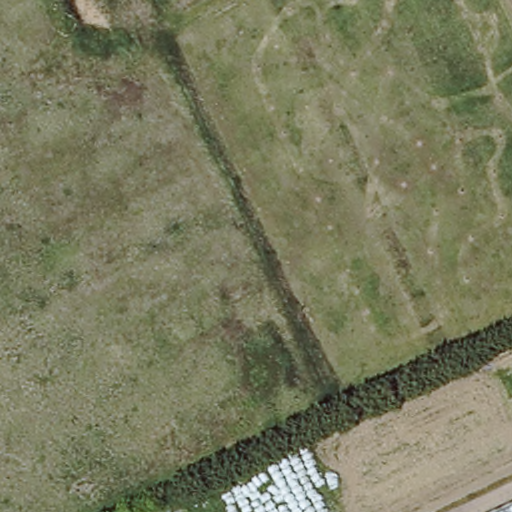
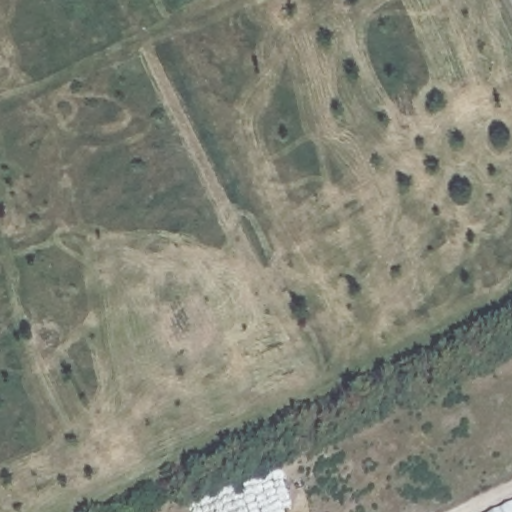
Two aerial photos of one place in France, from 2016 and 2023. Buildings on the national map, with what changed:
unchanged [(512,506),(512,512),(500,512),(512,506)]

